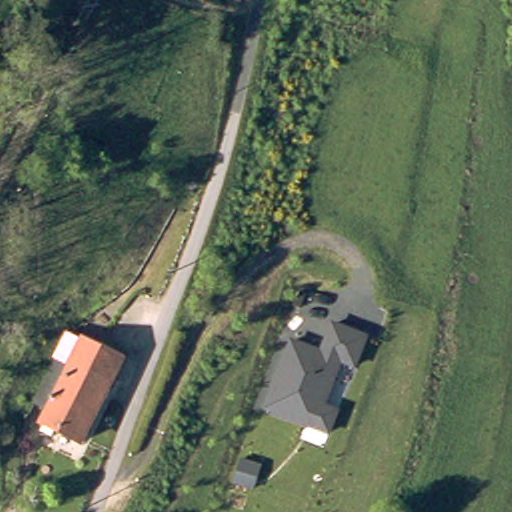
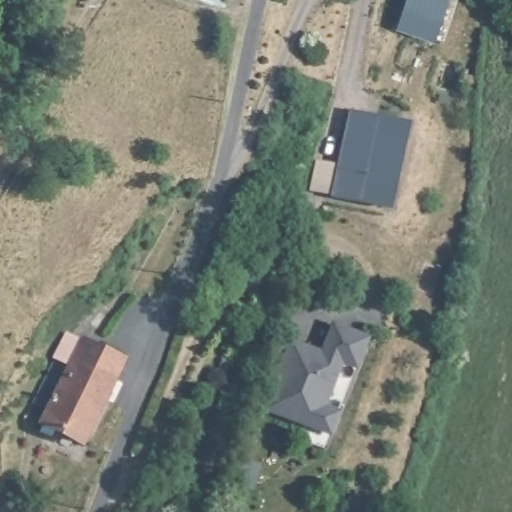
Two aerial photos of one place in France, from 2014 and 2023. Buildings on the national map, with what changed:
new [(446,0),(434,38),(397,25),(405,0),(446,0)]
new [(411,119),(392,207),(332,195),(351,107),(411,119)]
unchanged [(321,444),(297,434),(303,420),(262,403),(289,335),(320,348),(332,320),(366,334),(321,444)]
unchanged [(50,411),(33,403),(30,401),(61,332),(66,334),(81,341),(50,411)]
unchanged [(44,435),(48,426),(43,424),(50,411),(81,341),(108,355),(122,361),(122,362),(85,443),(57,430),(53,439),(44,435)]

